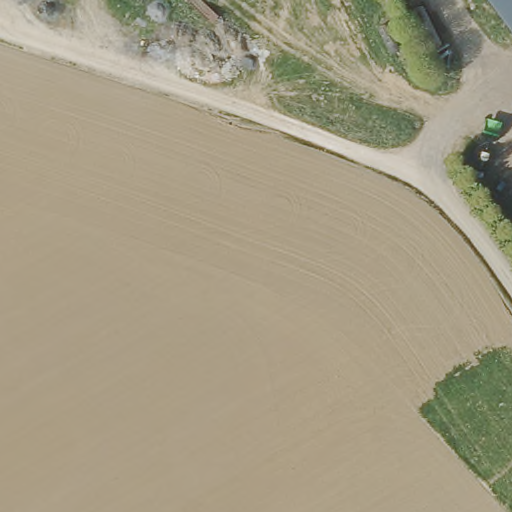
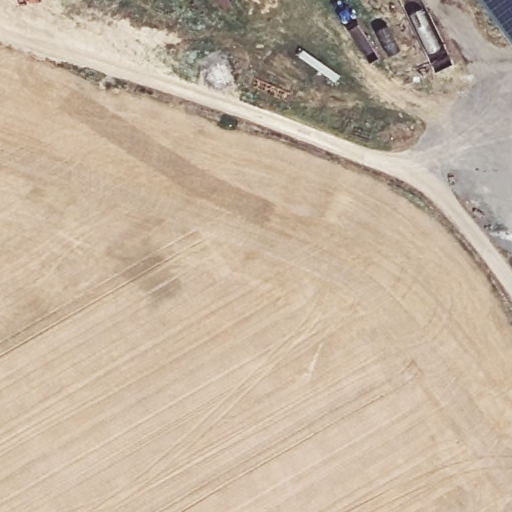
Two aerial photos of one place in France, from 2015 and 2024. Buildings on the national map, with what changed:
unchanged [(512,33),(483,0),(512,0),(512,33)]

